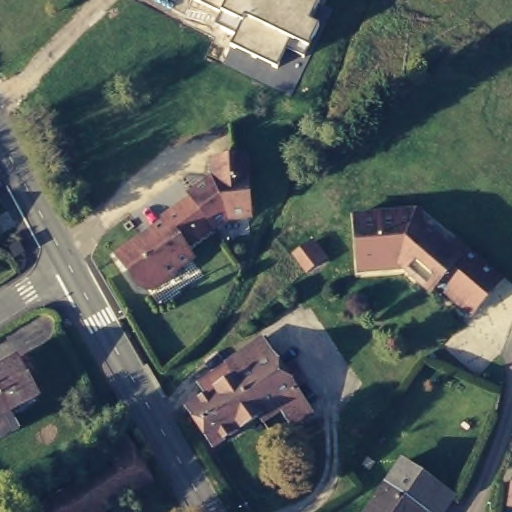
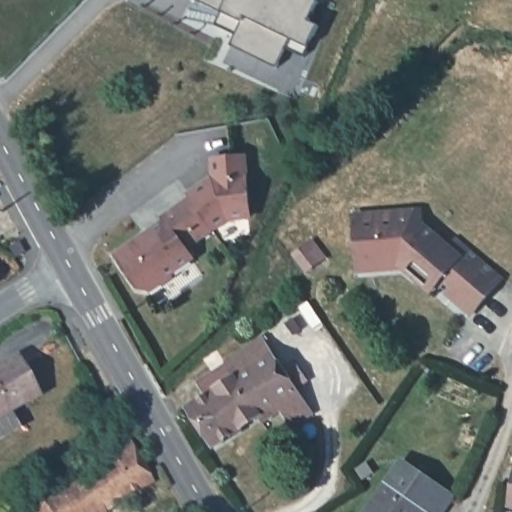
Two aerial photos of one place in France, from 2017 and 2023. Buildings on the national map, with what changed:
unchanged [(238,35),(215,26),(221,11),(195,0),(311,0),(318,3),(309,22),(319,25),(307,51),(289,43),(276,67),(232,46),(238,35)]
unchanged [(242,161),(243,164),(249,217),(226,219),(183,248),(188,257),(165,274),(165,277),(151,287),(134,284),(115,255),(164,221),(161,218),(191,198),(189,194),(214,177),(213,161),(240,161),(242,161)]
unchanged [(420,273),(384,263),(360,264),(359,255),(357,210),(420,206),(422,207),(423,218),(451,243),(457,238),(466,244),(501,277),(472,309),(439,280),(432,285),(420,273)]
unchanged [(293,249),(307,239),(313,235),(325,252),(319,257),(306,267),(293,249)]
unchanged [(277,404),(260,416),(261,418),(212,452),(188,414),(204,402),(198,391),(235,365),(233,363),(261,344),(264,342),(286,373),(296,366),(307,381),(297,388),(308,404),(315,414),(312,417),(294,428),(277,404)]
unchanged [(17,355),(36,394),(0,410),(0,363),(17,355)]
unchanged [(130,430),(157,477),(99,512),(36,512),(34,508),(117,457),(108,443),(130,430)]
unchanged [(380,489),(382,490),(384,487),(401,461),(435,485),(448,494),(436,512),(364,512),(380,489)]
unchanged [(512,488),(512,499),(510,499),(512,488)]

